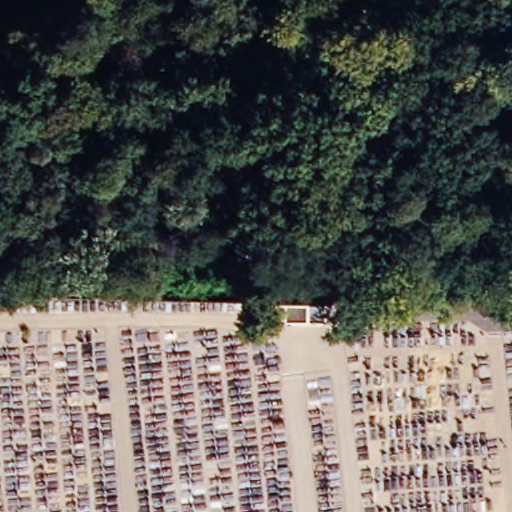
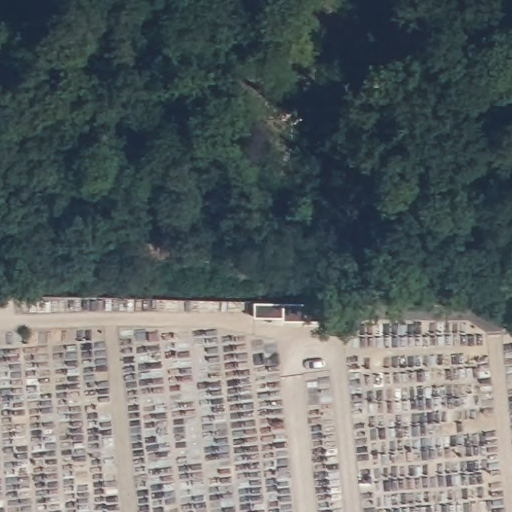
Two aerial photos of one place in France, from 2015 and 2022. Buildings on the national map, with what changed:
unchanged [(303,303),(320,303),(343,303),(343,318),(303,319),(303,303)]

